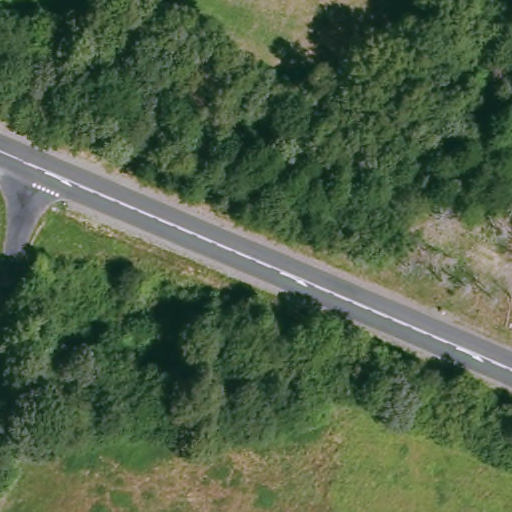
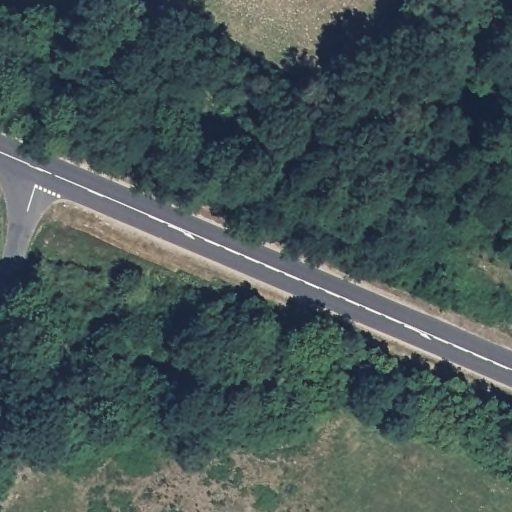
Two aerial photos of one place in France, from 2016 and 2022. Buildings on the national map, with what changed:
[]

